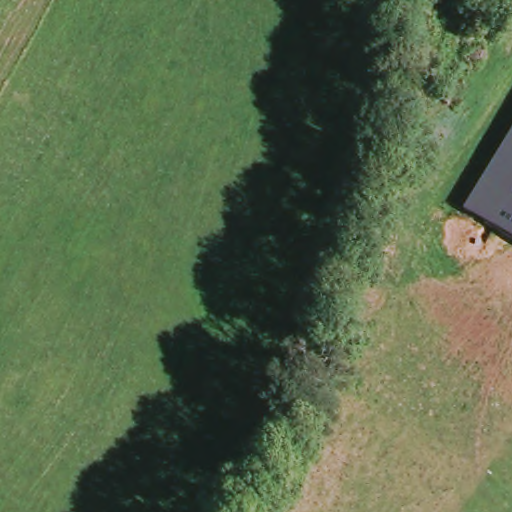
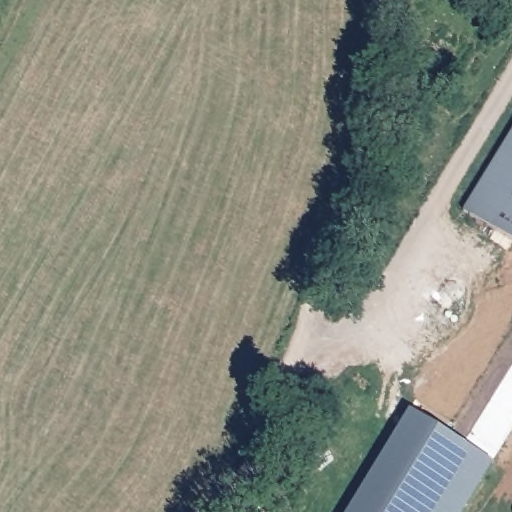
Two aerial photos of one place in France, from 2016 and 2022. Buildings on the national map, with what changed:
unchanged [(512,128),(512,241),(462,210),(512,128)]
new [(493,460),(461,512),(346,512),(408,410),(493,460)]

